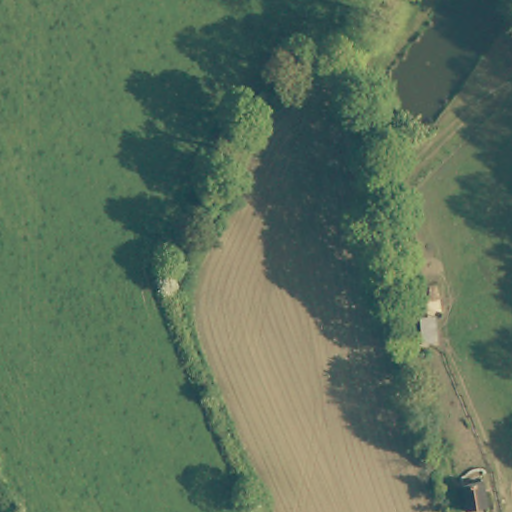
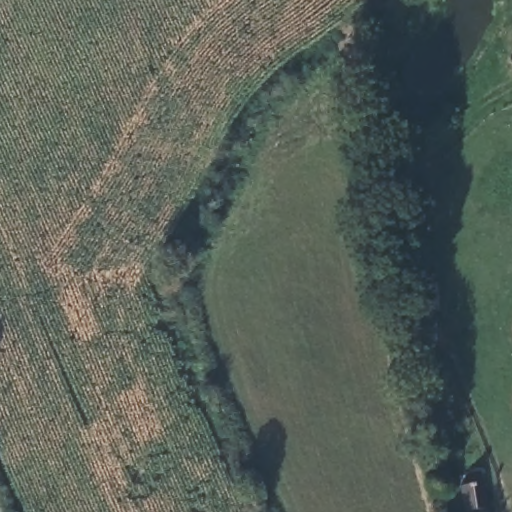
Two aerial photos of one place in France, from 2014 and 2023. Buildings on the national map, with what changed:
unchanged [(479,483),(482,508),(462,511),(457,485),(479,483)]

